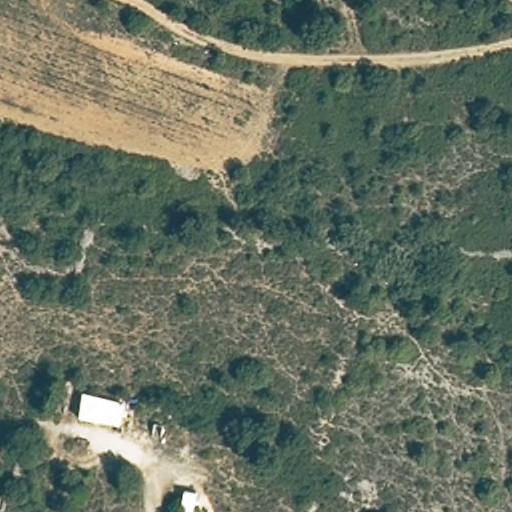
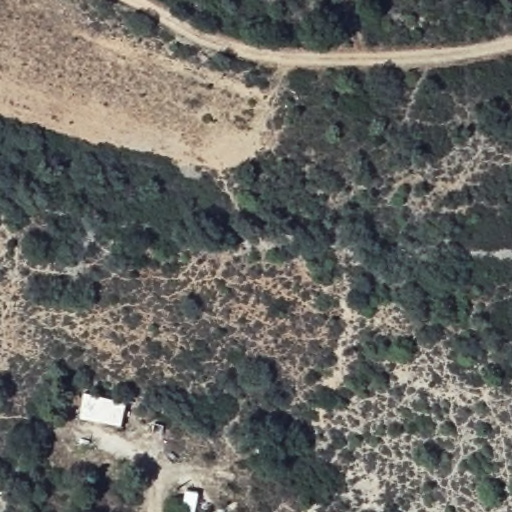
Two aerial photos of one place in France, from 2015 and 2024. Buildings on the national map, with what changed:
unchanged [(127,395),(125,420),(77,415),(80,390),(127,395)]

